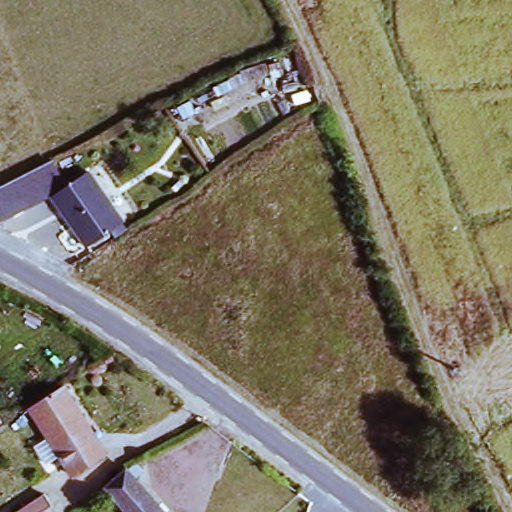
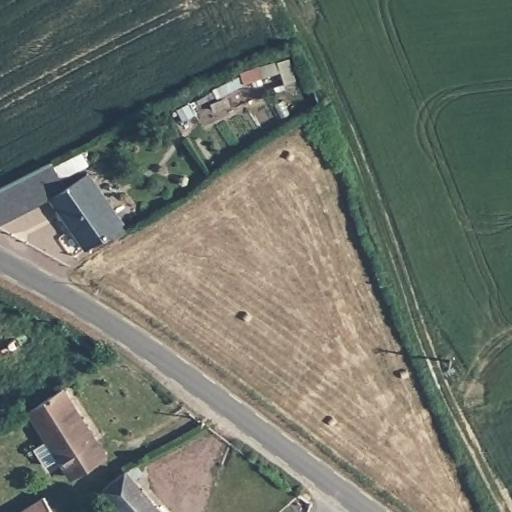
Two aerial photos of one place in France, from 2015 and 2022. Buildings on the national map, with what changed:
unchanged [(56,178),(41,185),(44,193),(0,217),(0,186),(48,162),(56,178)]
unchanged [(81,249),(59,206),(85,192),(99,185),(123,229),(108,236),(81,249)]
unchanged [(103,450),(69,475),(28,406),(66,384),(103,450)]
unchanged [(108,464),(173,512),(123,512),(92,488),(108,464)]
unchanged [(55,512),(16,512),(43,495),(55,512)]

